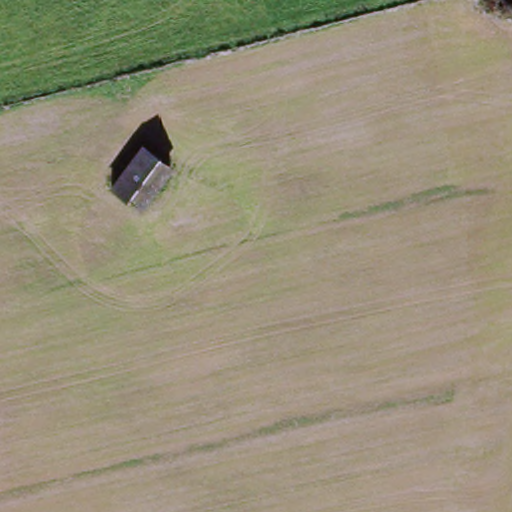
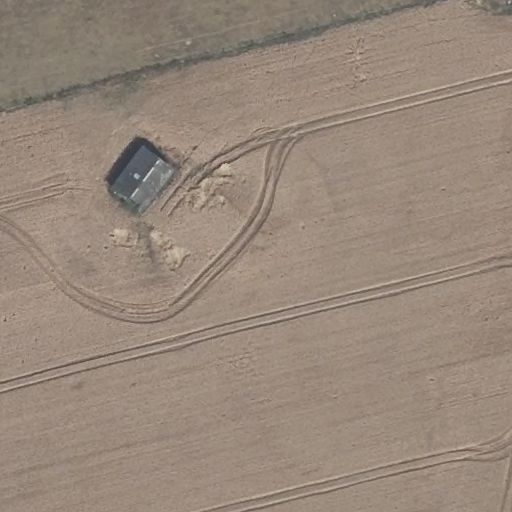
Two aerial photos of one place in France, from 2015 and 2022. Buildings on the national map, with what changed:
unchanged [(111,192),(144,148),(170,168),(137,213),(111,192)]

